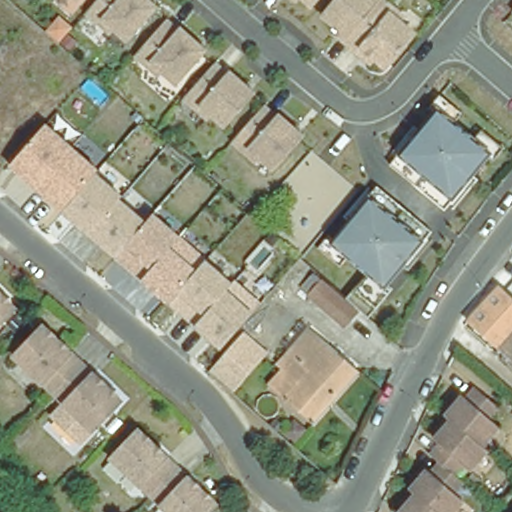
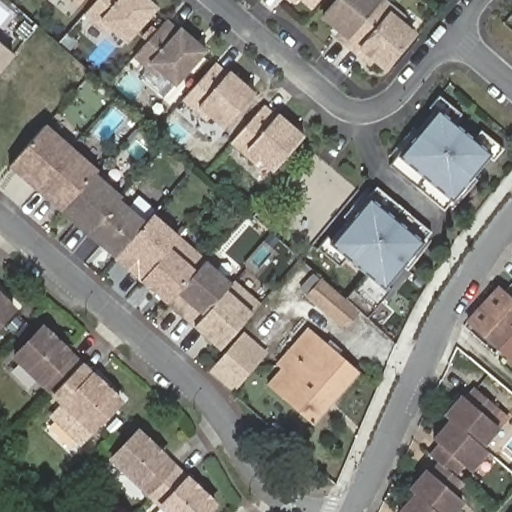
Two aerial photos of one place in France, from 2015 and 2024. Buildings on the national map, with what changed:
unchanged [(77,3),(74,0),(80,0),(77,3)]
unchanged [(94,0),(145,0),(155,9),(124,44),(110,32),(106,36),(81,15),(94,0)]
unchanged [(308,4),(304,0),(311,0),(308,4)]
unchanged [(330,23),(321,15),(333,0),(380,0),(383,3),(350,42),(348,45),(335,35),(326,28),(330,23)]
unchanged [(360,56),(348,45),(350,42),(383,3),(398,16),(395,20),(410,32),(382,66),(373,58),(369,63),(360,56)]
unchanged [(175,31),(177,29),(203,51),(172,86),(159,74),(155,79),(130,57),(131,56),(163,20),(175,31)]
new [(0,71),(0,43),(14,55),(0,71)]
unchanged [(180,99),(182,97),(212,63),(224,73),(226,71),(252,94),(221,129),(207,117),(204,122),(180,100),(180,99)]
unchanged [(395,160),(435,112),(430,107),(441,95),(447,100),(464,114),(456,123),(476,139),(483,130),(506,149),(495,161),(490,157),(450,206),(446,210),(391,165),(395,160)]
unchanged [(237,132),(260,106),(272,116),(275,114),(300,137),(270,172),(256,160),(252,164),(228,143),(237,132)]
unchanged [(234,341),(224,352),(10,167),(48,123),(100,169),(99,175),(121,194),(119,200),(150,222),(157,214),(260,302),(234,341)]
unchanged [(390,291),(395,295),(370,323),(348,303),(369,278),(338,253),(330,262),(325,258),(320,253),(330,241),(335,245),(351,226),(346,222),(353,213),(358,217),(376,196),(380,192),(435,237),(431,242),(413,263),(418,267),(411,276),(406,272),(390,291)]
unchanged [(360,319),(347,333),(311,299),(323,286),(360,319)]
unchanged [(477,335),(467,326),(497,293),(512,308),(512,367),(477,335)]
unchanged [(0,323),(0,298),(12,310),(0,323)]
unchanged [(14,358),(41,329),(80,366),(74,372),(52,395),(14,358)]
unchanged [(358,372),(312,424),(268,387),(281,373),(276,369),(309,334),(322,344),(325,342),(358,372)]
unchanged [(222,364),(219,359),(224,352),(234,341),(255,361),(231,390),(213,374),(222,364)]
unchanged [(119,403),(91,431),(52,395),(74,372),(80,366),(119,403)]
unchanged [(437,423),(431,419),(446,398),(451,401),(458,391),(486,411),(475,425),(485,432),(473,450),(437,423)]
unchanged [(480,455),(479,456),(462,475),(453,468),(446,476),(435,467),(418,454),(430,442),(425,438),(436,425),(437,423),(473,450),(480,455)]
unchanged [(170,469),(144,497),(105,460),(132,433),(170,469)]
unchanged [(443,494),(462,510),(460,512),(425,512),(412,502),(400,493),(417,473),(425,479),(435,467),(446,476),(453,481),(443,494)]
unchanged [(209,506),(202,512),(160,512),(144,497),(170,469),(170,470),(209,506)]
unchanged [(404,512),(412,502),(425,512),(404,512)]

